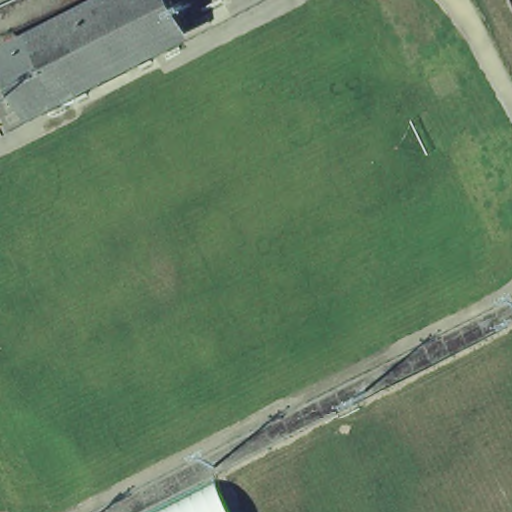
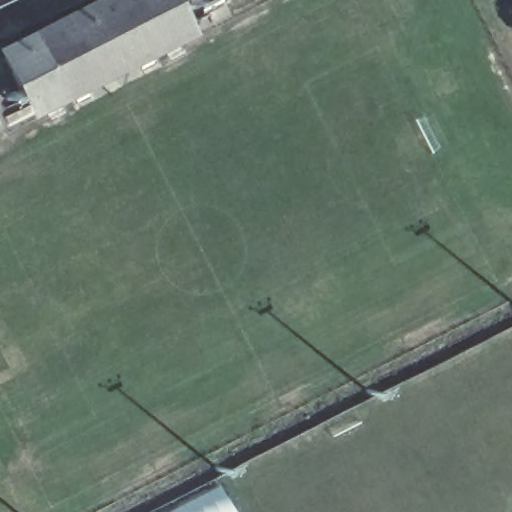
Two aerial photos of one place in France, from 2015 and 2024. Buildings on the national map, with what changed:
unchanged [(103,4),(111,0),(171,0),(175,9),(182,23),(56,86),(25,101),(1,54),(33,39),(50,31),(82,14),(103,4)]
unchanged [(206,486),(220,512),(156,512),(206,486)]

